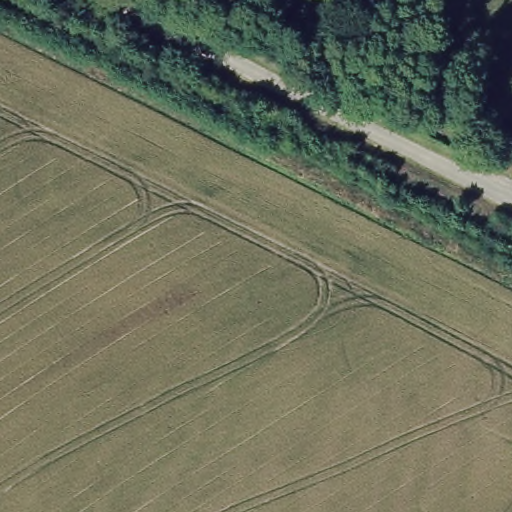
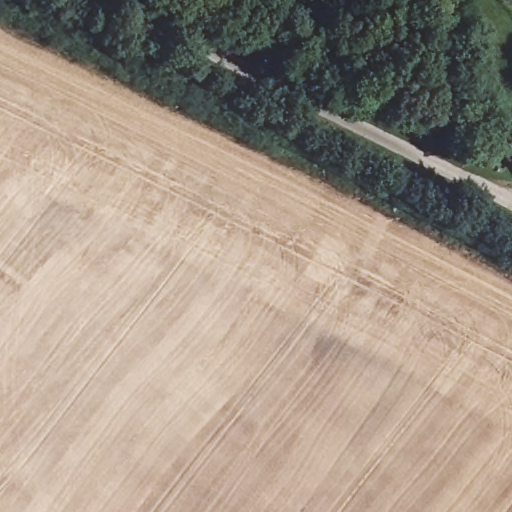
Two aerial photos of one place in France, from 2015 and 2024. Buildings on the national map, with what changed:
[]

